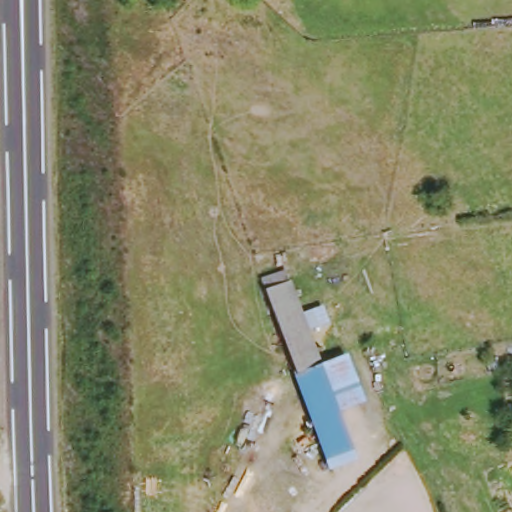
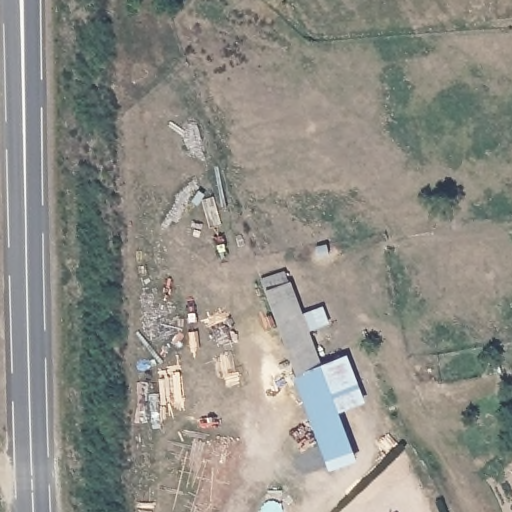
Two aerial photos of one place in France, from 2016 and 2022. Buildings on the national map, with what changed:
unchanged [(279,272),(288,271),(292,281),(285,284),(299,313),(318,308),(324,325),(303,331),(310,353),(320,350),(322,365),(323,367),(327,379),(321,381),(334,417),(351,464),(323,474),(284,377),(291,375),(258,294),(254,281),(279,272)]
unchanged [(348,356),(368,404),(334,417),(321,381),(327,379),(323,367),(348,356)]

